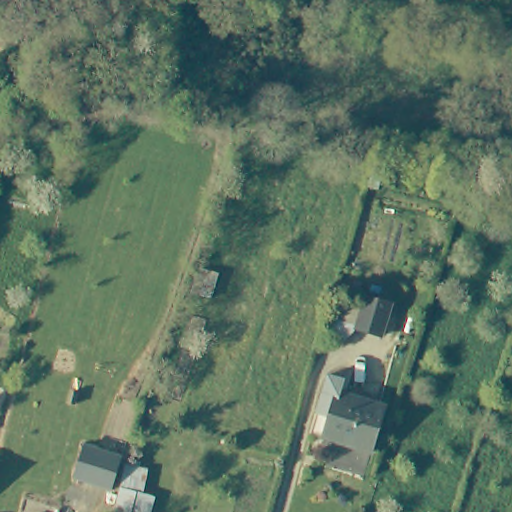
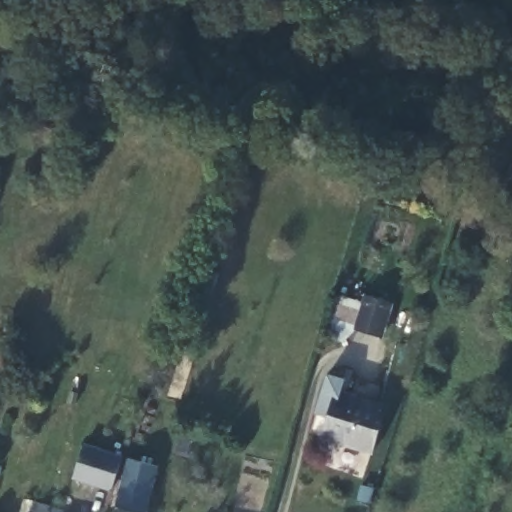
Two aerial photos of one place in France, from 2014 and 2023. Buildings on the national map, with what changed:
unchanged [(390,338),(358,327),(363,309),(336,301),(346,279),(398,302),(390,338)]
unchanged [(336,409),(343,410),(348,390),(392,402),(378,449),(330,435),(336,409)]
unchanged [(121,463),(113,497),(74,486),(83,452),(121,463)]
unchanged [(143,493),(157,496),(154,512),(117,512),(127,465),(150,467),(143,493)]

